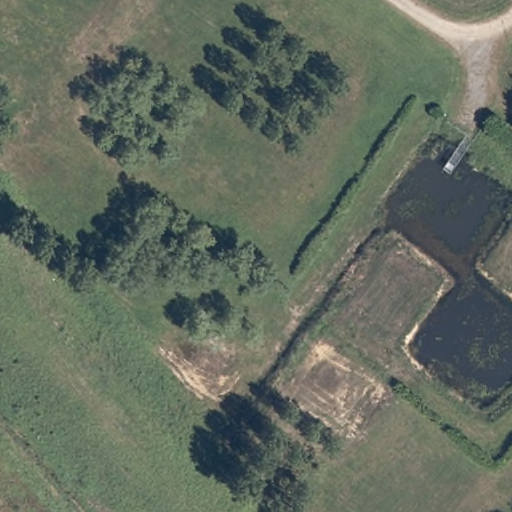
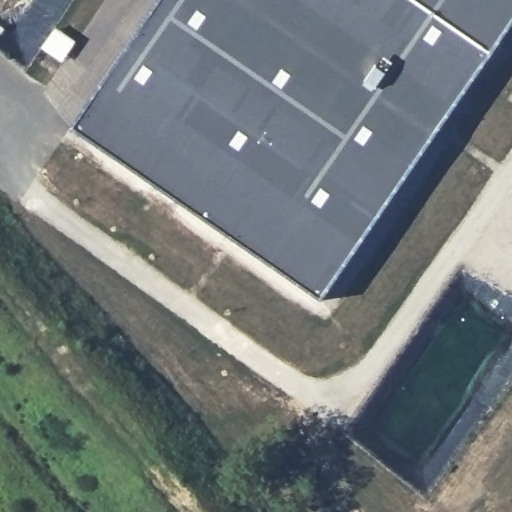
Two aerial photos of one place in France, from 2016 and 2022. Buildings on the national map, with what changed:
new [(320,299),(73,127),(160,0),(512,0),(512,21),(320,299)]

